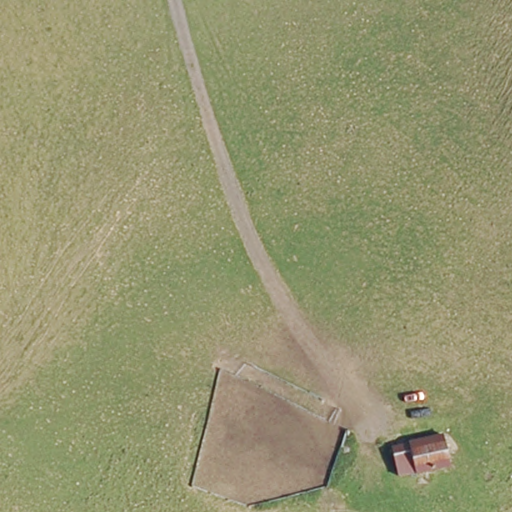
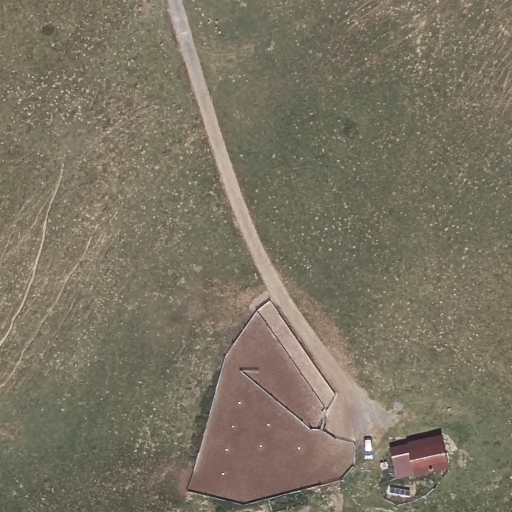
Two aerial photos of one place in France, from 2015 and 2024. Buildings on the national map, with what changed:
unchanged [(421,436),(443,431),(449,462),(401,472),(396,442),(421,436)]

